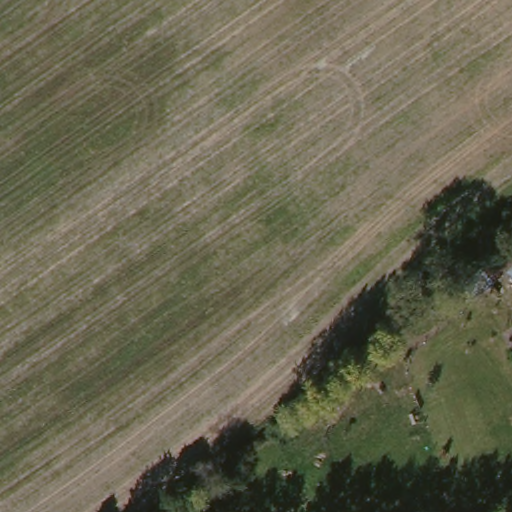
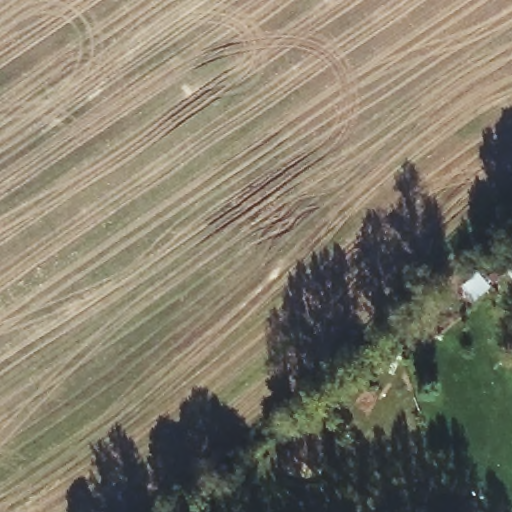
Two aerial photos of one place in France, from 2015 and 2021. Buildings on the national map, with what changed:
unchanged [(502,250),(463,289),(448,273),(488,236),(502,250)]

